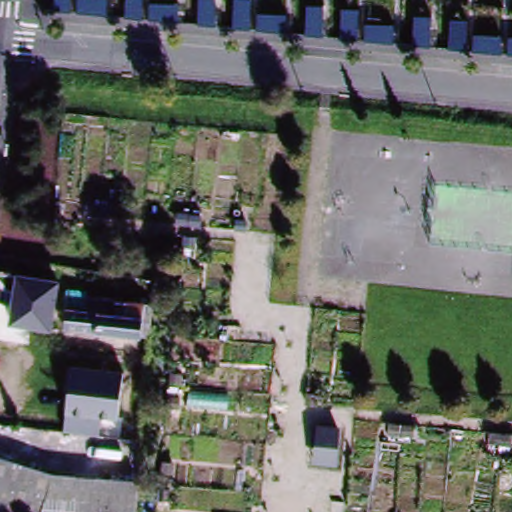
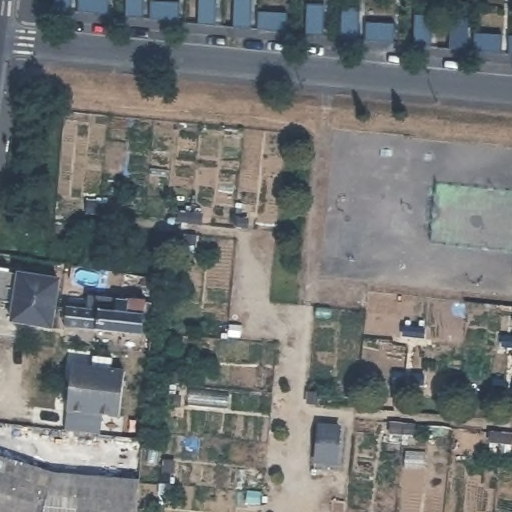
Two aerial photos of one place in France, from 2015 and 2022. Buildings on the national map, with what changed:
unchanged [(86,215),(87,203),(114,205),(113,217),(86,215)]
unchanged [(176,224),(178,212),(190,212),(189,225),(176,224)]
unchanged [(192,213),(203,214),(203,227),(190,226),(192,213)]
unchanged [(236,218),(249,219),(247,231),(235,230),(236,218)]
unchanged [(183,247),(185,235),(197,236),(196,249),(183,247)]
unchanged [(53,328),(9,322),(12,302),(0,300),(0,271),(17,272),(60,280),(53,328)]
unchanged [(144,316),(152,316),(150,338),(70,331),(64,330),(66,308),(68,295),(87,297),(100,298),(145,303),(144,316)]
unchanged [(127,370),(123,412),(72,408),(76,366),(127,370)]
unchanged [(308,393),(319,394),(319,405),(307,405),(308,393)]
unchanged [(313,465),(318,425),(341,427),(338,467),(313,465)]
unchanged [(512,435),(512,448),(489,444),(490,433),(512,435)]
unchanged [(265,481),(264,493),(251,493),(253,480),(265,481)]
unchanged [(263,495),(262,507),(250,506),(251,493),(263,495)]

